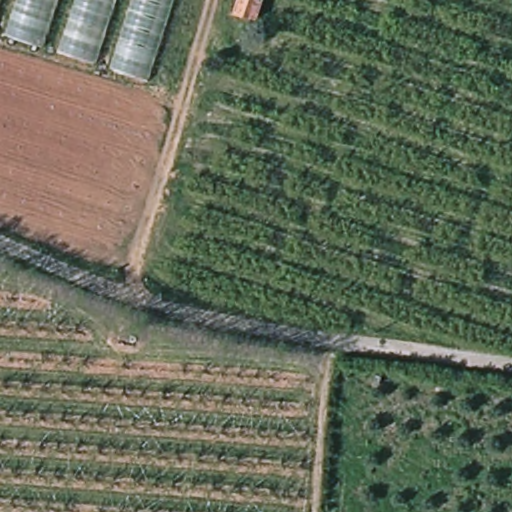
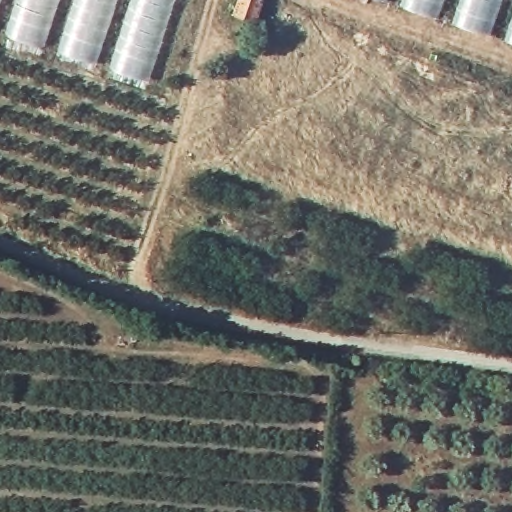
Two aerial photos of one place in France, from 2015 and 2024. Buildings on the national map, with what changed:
unchanged [(0,32),(0,0),(170,0),(146,79),(0,32)]
unchanged [(237,19),(243,0),(248,0),(264,6),(258,27),(237,19)]
new [(512,0),(512,43),(385,0),(512,0)]

